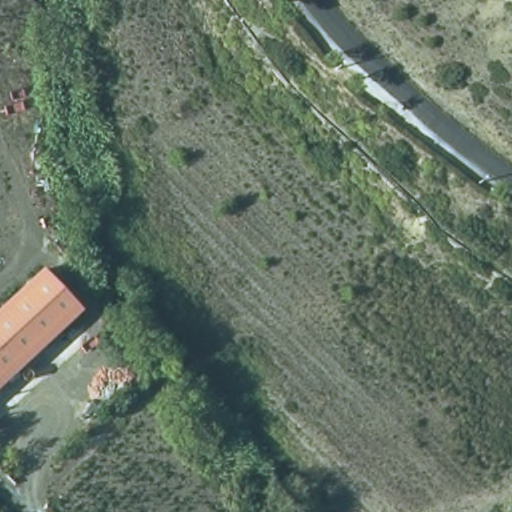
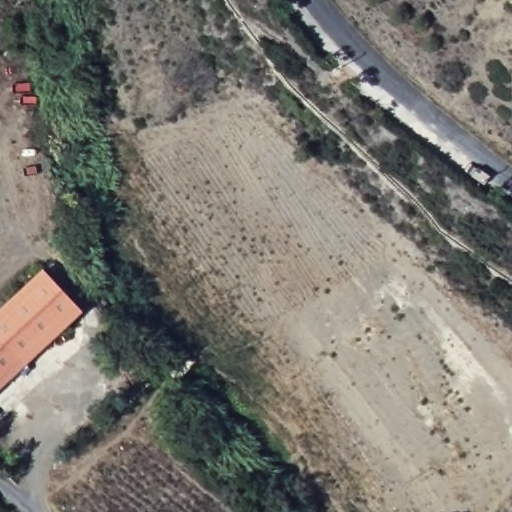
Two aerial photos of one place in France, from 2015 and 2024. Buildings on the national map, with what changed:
unchanged [(84,314),(20,373),(0,391),(0,316),(46,273),(71,300),(84,314)]

